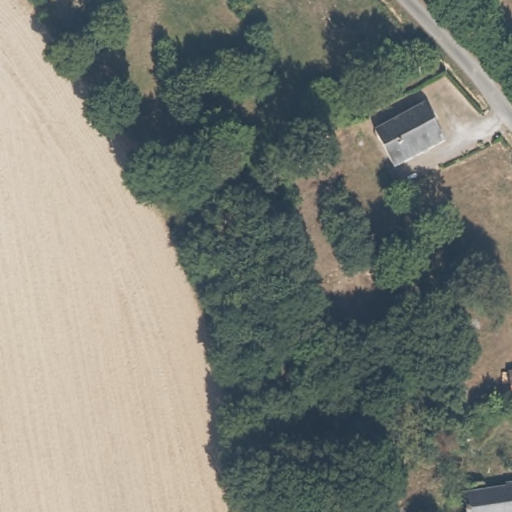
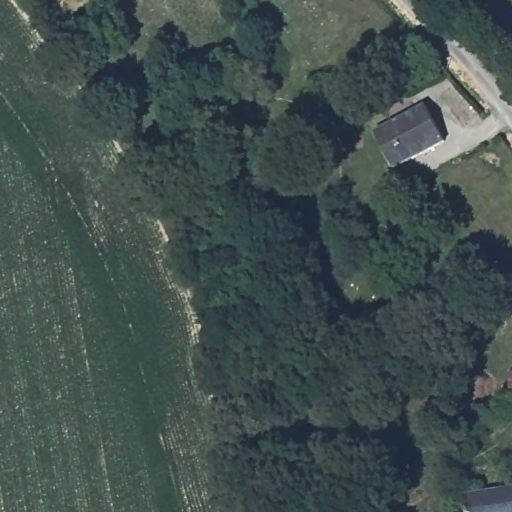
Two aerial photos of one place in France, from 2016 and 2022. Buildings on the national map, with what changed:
unchanged [(397,167),(376,130),(423,103),(443,140),(397,167)]
unchanged [(509,373),(512,372),(512,391),(509,373)]
unchanged [(510,483),(510,478),(512,478),(512,512),(471,512),(467,493),(510,483)]

